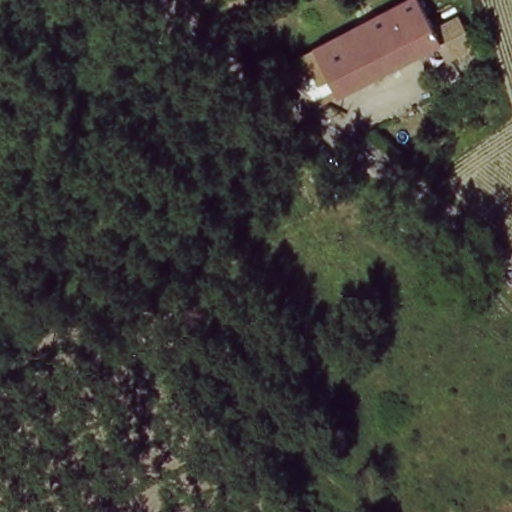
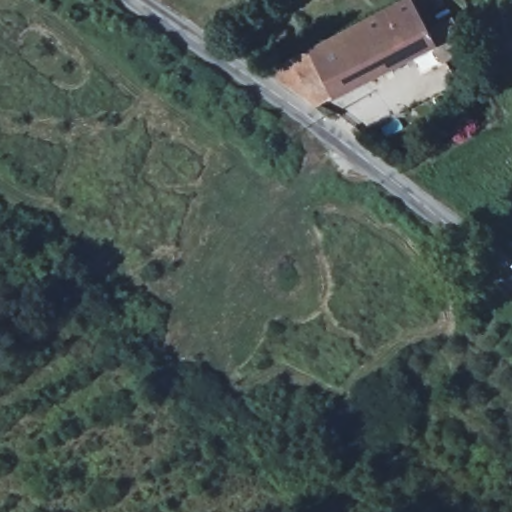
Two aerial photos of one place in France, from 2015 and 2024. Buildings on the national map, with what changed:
unchanged [(415,3),(425,21),(447,10),(470,54),(450,64),(438,46),(316,103),(272,74),(415,3)]

